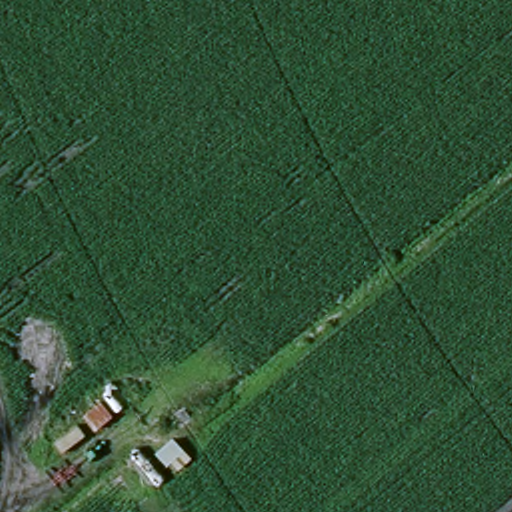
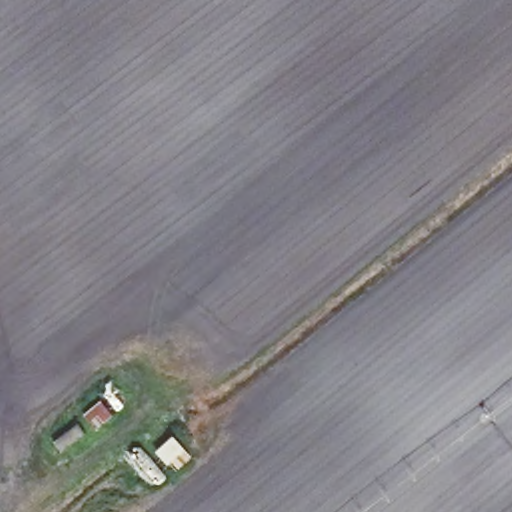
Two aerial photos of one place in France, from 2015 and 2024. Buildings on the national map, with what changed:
unchanged [(93,433),(81,414),(103,402),(114,421),(93,433)]
unchanged [(174,477),(156,452),(175,439),(193,463),(174,477)]

